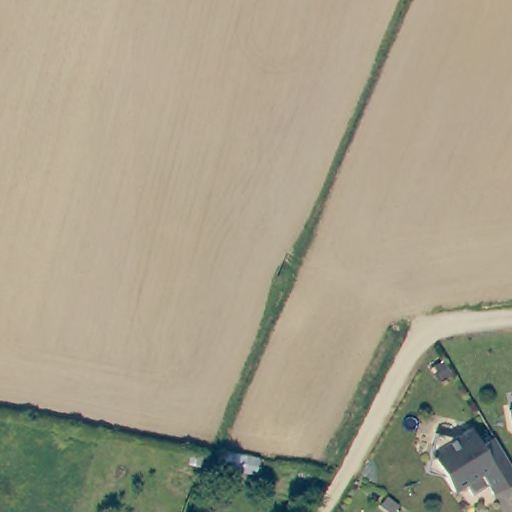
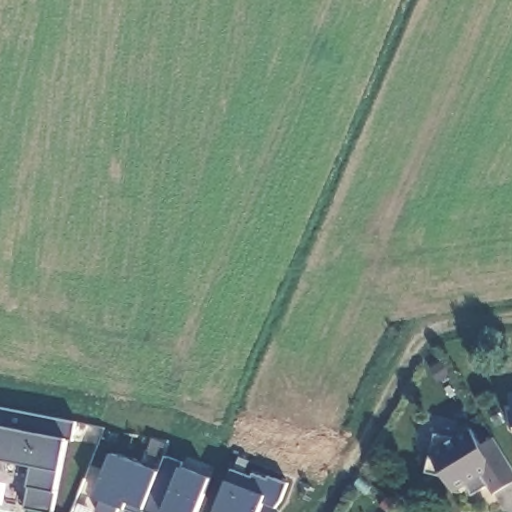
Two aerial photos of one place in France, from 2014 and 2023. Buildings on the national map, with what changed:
new [(77,422),(74,439),(67,439),(57,490),(52,512),(28,508),(31,486),(34,465),(0,459),(0,407),(77,422)]
unchanged [(492,435),(512,468),(512,479),(491,492),(486,483),(470,493),(464,481),(452,489),(442,474),(424,470),(434,431),(453,435),(469,426),(479,443),(492,435)]
demolished [(263,458),(260,474),(220,467),(222,450),(263,458)]
new [(158,470),(165,455),(182,462),(181,466),(210,477),(196,512),(144,512),(145,508),(127,502),(124,507),(95,496),(112,453),(158,470)]
new [(232,469),(252,477),(253,473),(287,483),(276,507),(261,503),(258,512),(216,512),(215,511),(227,480),(232,469)]

